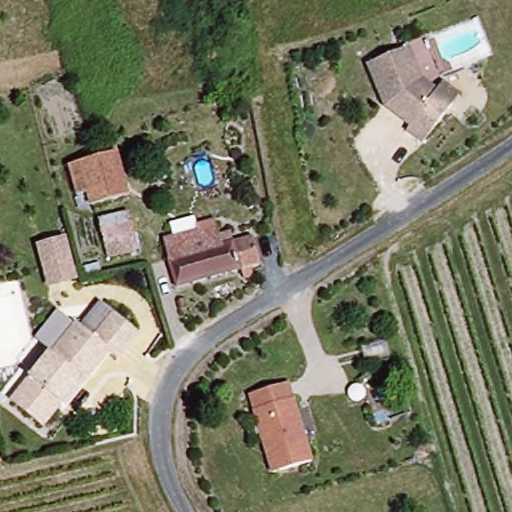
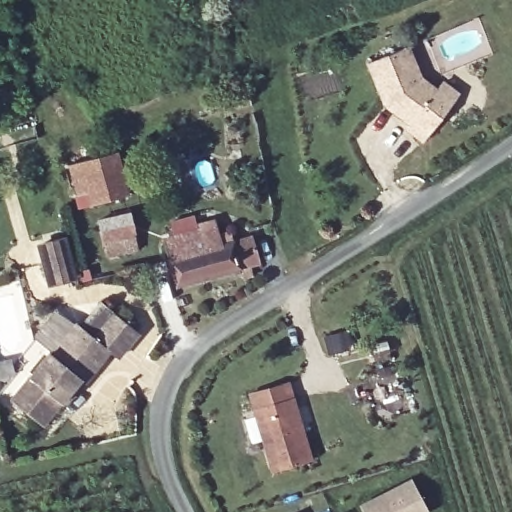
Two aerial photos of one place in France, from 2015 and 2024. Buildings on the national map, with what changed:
unchanged [(402,136),(407,130),(378,108),(360,69),(398,51),(416,87),(430,96),(436,87),(451,97),(446,106),(417,147),(402,136)]
unchanged [(86,204),(85,195),(75,195),(67,162),(119,150),(130,195),(86,204)]
unchanged [(131,217),(137,250),(111,255),(105,221),(131,217)]
unchanged [(165,247),(192,240),(190,228),(207,223),(211,236),(225,232),(228,244),(253,237),(261,267),(177,290),(165,247)]
unchanged [(65,280),(40,287),(29,249),(52,241),(65,280)]
unchanged [(20,390),(44,354),(66,320),(89,335),(106,309),(132,326),(115,352),(107,347),(84,382),(79,378),(45,430),(15,409),(9,405),(20,390)]
unchanged [(265,470),(247,408),(244,393),(281,382),(285,396),(303,458),(265,470)]
new [(429,512),(362,512),(359,506),(411,478),(429,512)]

